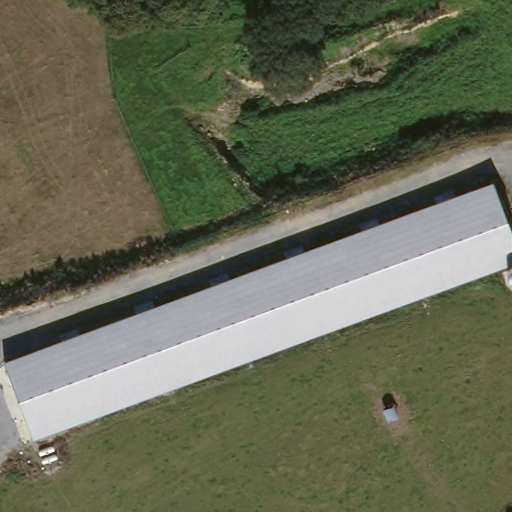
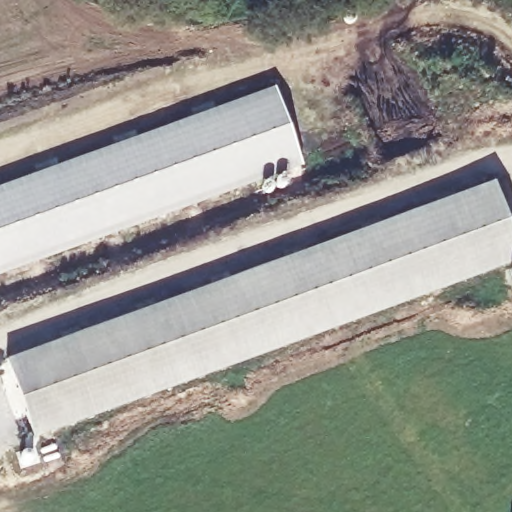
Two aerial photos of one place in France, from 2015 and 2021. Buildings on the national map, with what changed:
new [(303,161),(0,271),(0,191),(279,90),(303,161)]
unchanged [(512,265),(34,439),(5,362),(493,182),(512,234),(512,265)]

